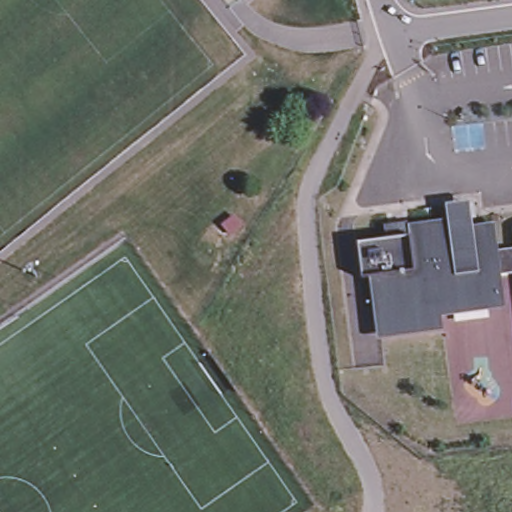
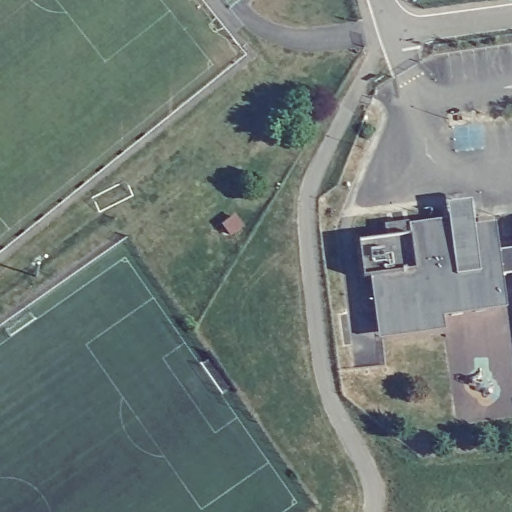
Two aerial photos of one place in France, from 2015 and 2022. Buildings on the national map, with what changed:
unchanged [(502,274),(505,298),(445,306),(446,320),(447,330),(385,338),(383,329),(377,276),(367,277),(362,241),(394,237),(393,228),(452,220),(450,203),(473,199),(476,217),(477,227),(496,225),(500,249),(512,247),(512,273),(502,274)]

